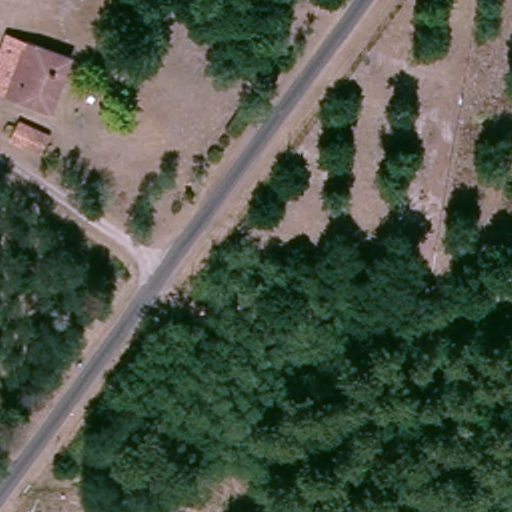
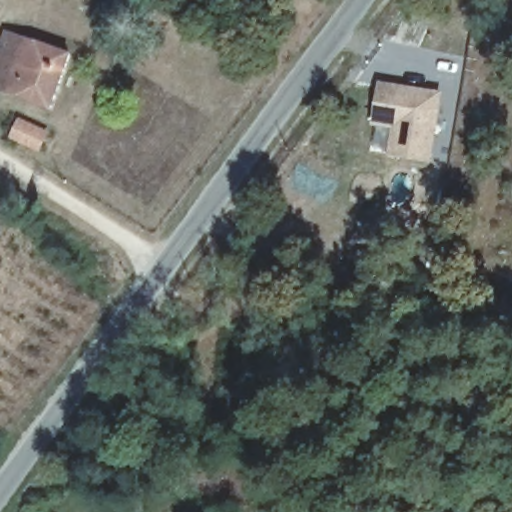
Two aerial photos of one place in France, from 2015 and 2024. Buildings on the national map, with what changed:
unchanged [(69,56),(51,107),(5,92),(24,37),(69,56)]
new [(387,155),(392,129),(371,126),(379,82),(444,92),(432,164),(387,155)]
unchanged [(1,132),(7,117),(45,135),(39,149),(1,132)]

